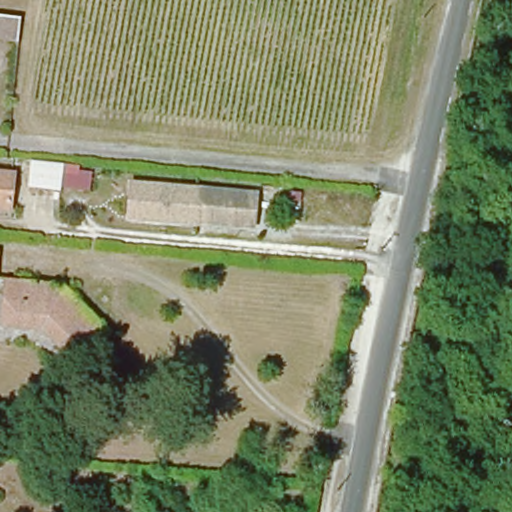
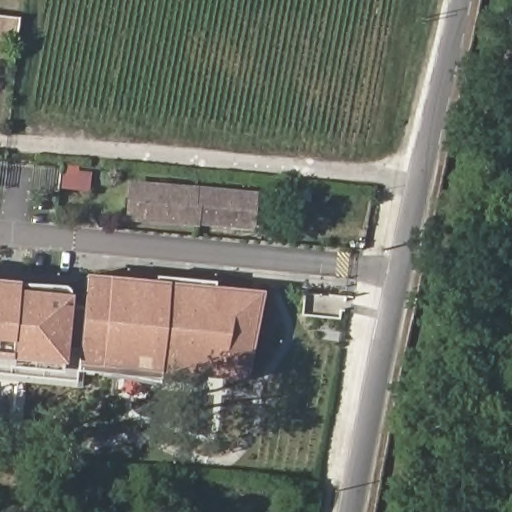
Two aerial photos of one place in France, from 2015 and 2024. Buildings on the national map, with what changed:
unchanged [(14,41),(0,39),(0,15),(16,17),(14,41)]
demolished [(57,156),(68,158),(65,181),(64,182),(64,187),(31,184),(34,155),(57,156)]
unchanged [(83,159),(82,169),(95,170),(94,187),(64,182),(65,181),(68,158),(83,159)]
unchanged [(202,191),(258,197),(254,229),(200,224),(200,225),(135,218),(139,185),(202,191)]
new [(160,373),(159,379),(83,372),(81,388),(0,380),(0,279),(21,281),(20,283),(65,286),(66,286),(69,288),(70,289),(71,292),(71,294),(74,294),(73,306),(84,306),(87,273),(110,276),(156,280),(156,276),(217,281),(216,286),(265,291),(248,382),(163,374),(160,373)]
demolished [(108,337),(78,369),(42,334),(0,329),(4,285),(59,290),(108,337)]

